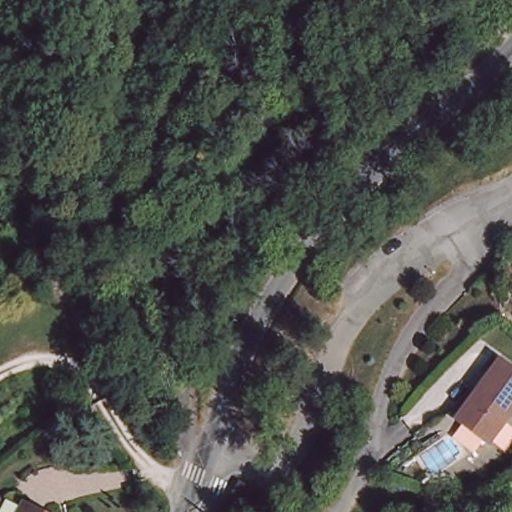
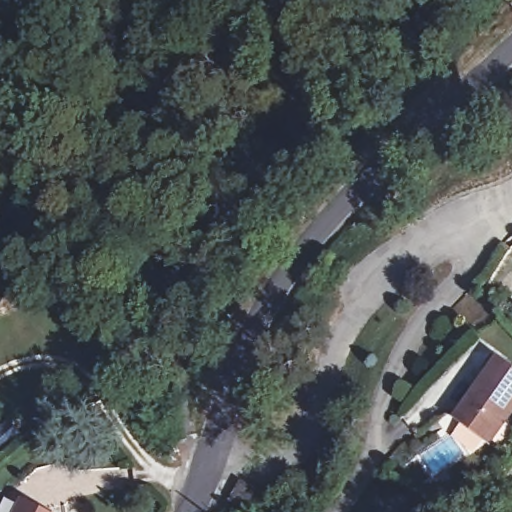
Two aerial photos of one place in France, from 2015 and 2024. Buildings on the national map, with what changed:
unchanged [(459,421),(496,361),(512,371),(512,404),(490,440),(459,421)]
unchanged [(252,479),(266,465),(279,479),(266,493),(252,479)]
unchanged [(47,512),(17,512),(24,500),(47,512)]

